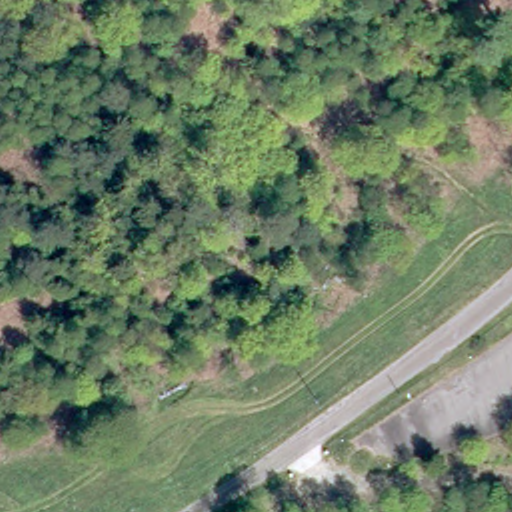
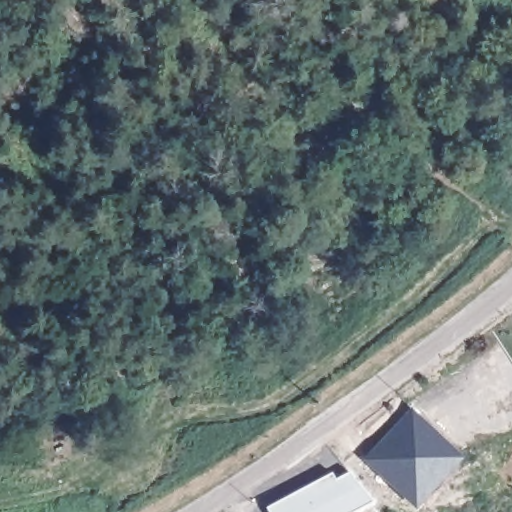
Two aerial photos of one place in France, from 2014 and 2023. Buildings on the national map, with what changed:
new [(379,445),(388,453),(404,436),(397,428),(412,412),(459,458),(413,508),(363,461),(379,445)]
new [(286,506),(283,498),(330,473),(334,480),(348,472),(371,502),(353,512),(274,512),(286,506)]

